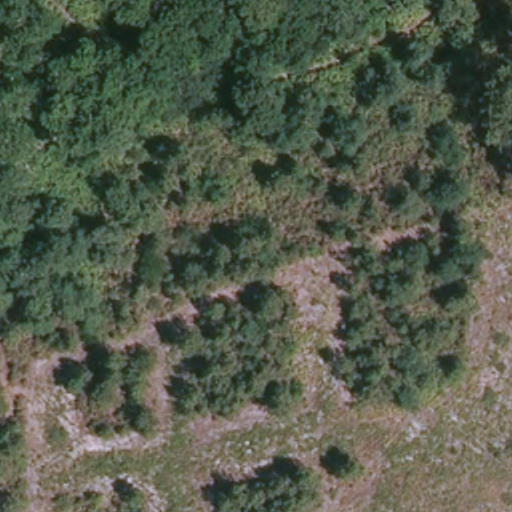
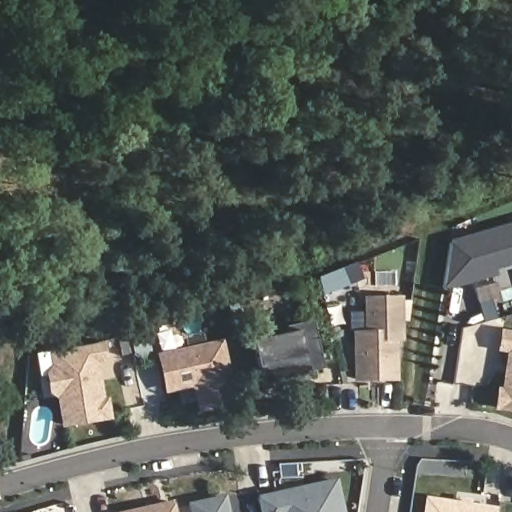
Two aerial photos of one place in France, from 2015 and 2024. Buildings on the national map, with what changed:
new [(497,276),(441,292),(450,240),(512,222),(512,265),(495,270),(497,276)]
new [(353,381),(352,330),(365,329),(363,295),(402,295),(403,341),(396,341),(397,380),(353,381)]
new [(307,373),(300,375),(300,382),(258,390),(257,383),(249,340),(245,333),(313,319),(324,368),(307,373)]
new [(496,386),(500,387),(505,352),(495,351),(498,329),(512,331),(512,411),(493,408),(496,386)]
new [(197,413),(191,387),(164,393),(155,352),(222,338),(237,404),(197,413)]
new [(60,426),(55,399),(47,393),(44,372),(50,365),(47,352),(104,342),(107,360),(97,362),(102,396),(106,396),(111,418),(60,426)]
new [(344,512),(260,512),(256,495),(337,477),(344,512)]
new [(186,502),(225,493),(229,512),(189,512),(186,502)]
new [(423,495),(496,505),(496,512),(421,512),(423,495)]
new [(173,500),(176,512),(116,512),(173,500)]

